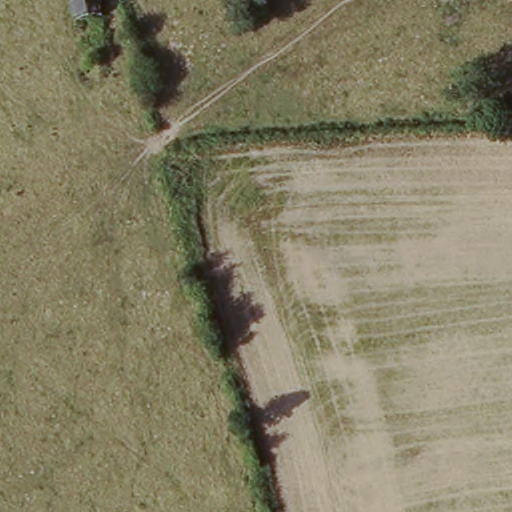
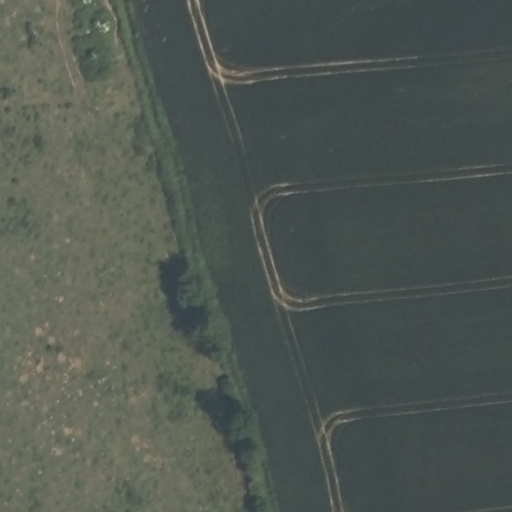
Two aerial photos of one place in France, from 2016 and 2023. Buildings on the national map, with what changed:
unchanged [(75,57),(65,0),(98,0),(106,55),(75,57)]

